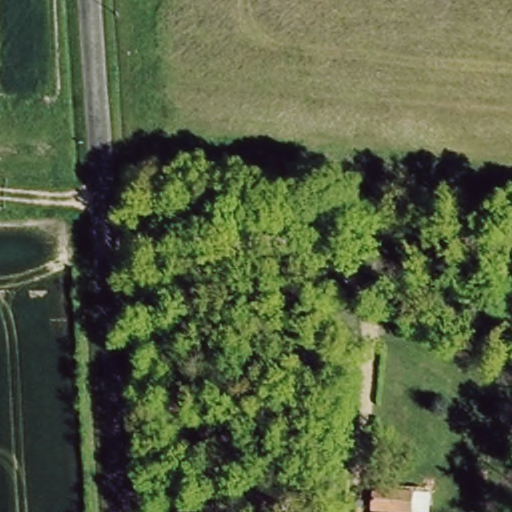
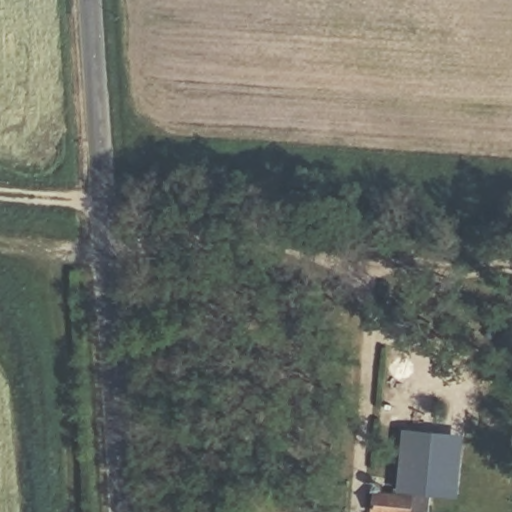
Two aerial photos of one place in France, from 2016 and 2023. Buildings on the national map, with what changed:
new [(398,435),(458,435),(458,495),(398,496),(398,435)]
unchanged [(374,498),(416,505),(415,512),(372,512),(374,498)]

